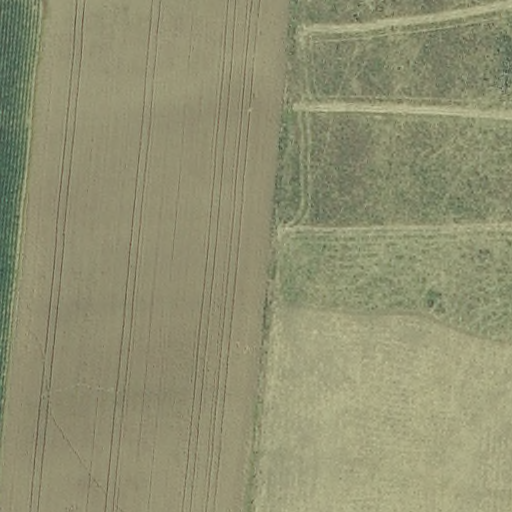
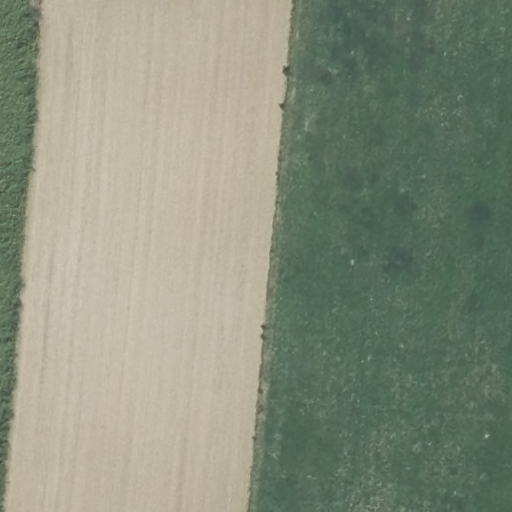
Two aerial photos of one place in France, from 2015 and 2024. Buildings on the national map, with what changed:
[]

